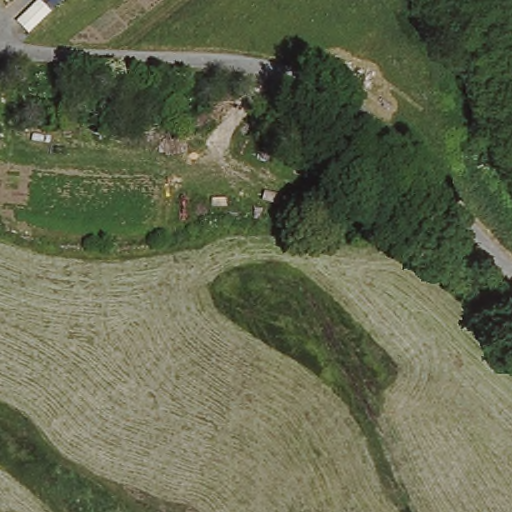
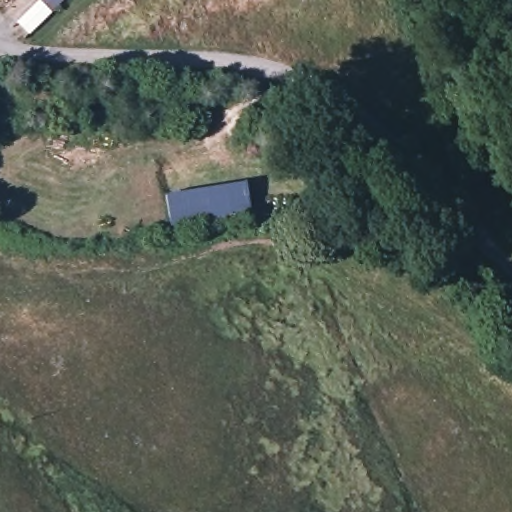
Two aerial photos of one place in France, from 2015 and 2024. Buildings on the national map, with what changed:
unchanged [(34,0),(61,0),(27,34),(13,20),(34,0)]
new [(245,182),(250,212),(170,226),(165,195),(245,182)]

